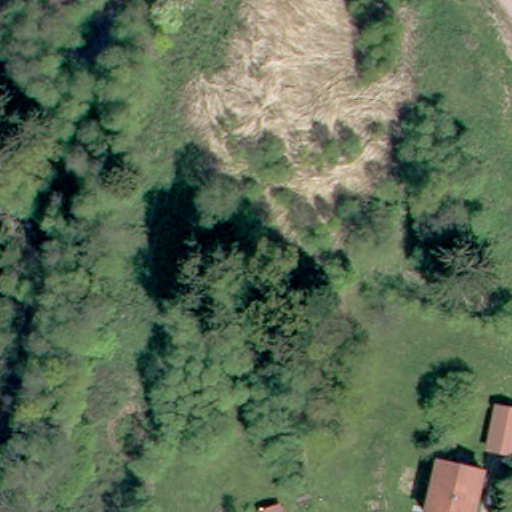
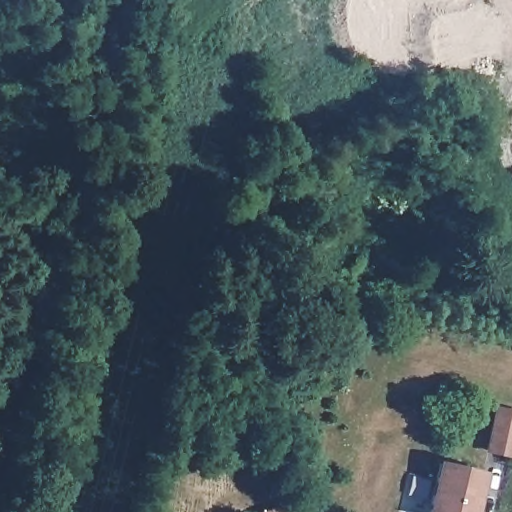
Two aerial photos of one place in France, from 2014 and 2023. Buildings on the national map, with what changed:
unchanged [(491,408),(512,412),(512,437),(508,454),(482,448),(491,408)]
unchanged [(487,477),(478,512),(429,512),(439,466),(487,477)]
unchanged [(284,512),(260,512),(282,505),(284,512)]

